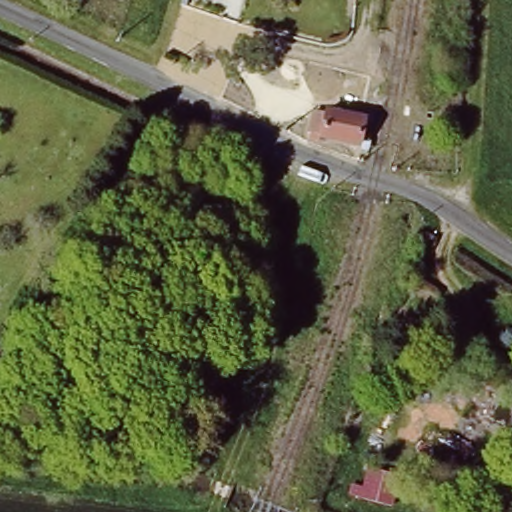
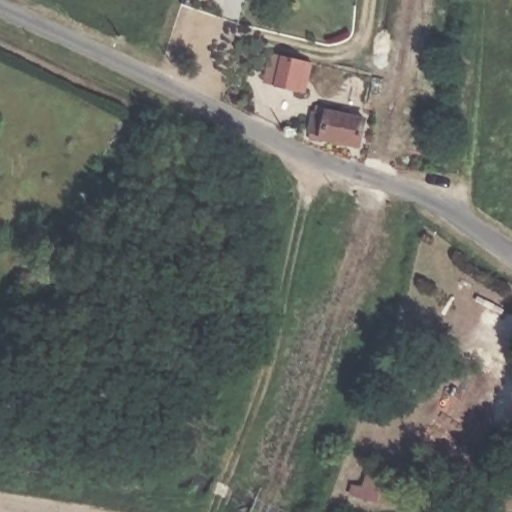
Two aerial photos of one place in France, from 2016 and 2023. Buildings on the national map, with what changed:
new [(317,82),(309,80),(305,94),(285,88),(273,85),(281,56),(321,67),(317,82)]
unchanged [(320,129),(312,126),(317,112),(324,114),(325,111),(363,119),(358,142),(320,133),(320,129)]

